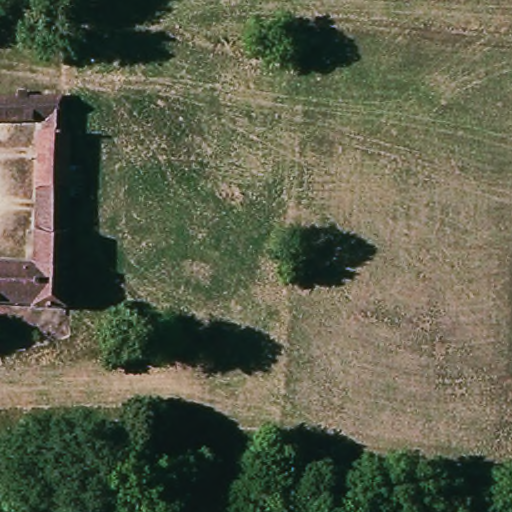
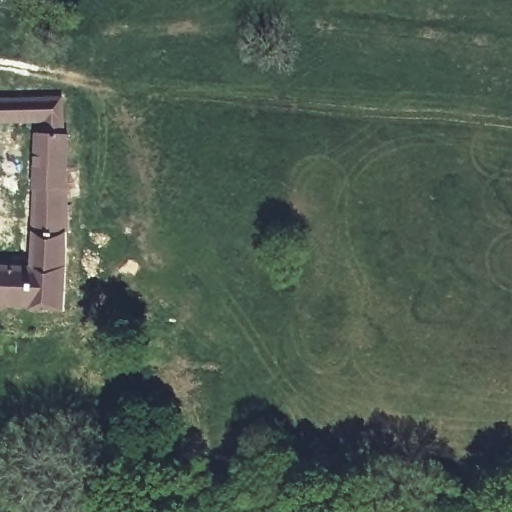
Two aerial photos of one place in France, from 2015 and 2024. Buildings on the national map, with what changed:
unchanged [(34,136),(40,136),(40,124),(0,123),(0,94),(15,95),(17,87),(25,88),(25,94),(60,96),(58,123),(66,137),(61,305),(0,302),(0,264),(25,266),(34,136)]

